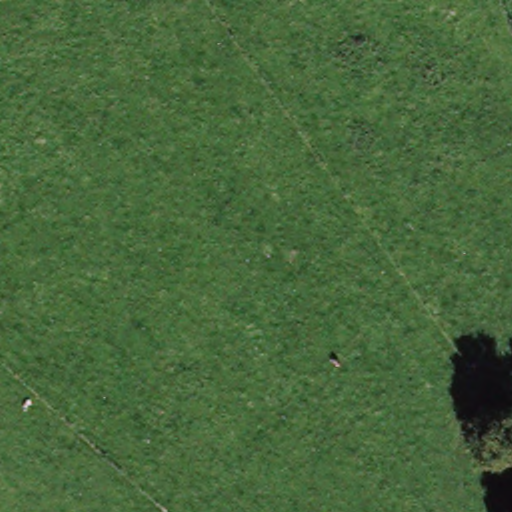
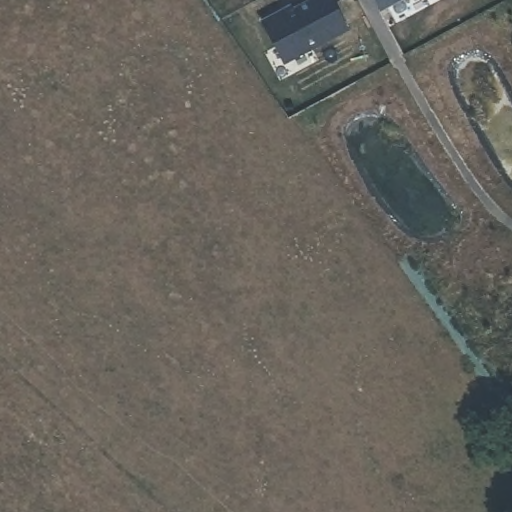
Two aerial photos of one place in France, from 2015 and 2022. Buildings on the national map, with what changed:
new [(288,5),(289,9),(282,13),(306,0),(329,0),(344,27),(282,61),(260,20),(280,9),(288,5)]
new [(373,0),(402,0),(380,12),(373,0)]

